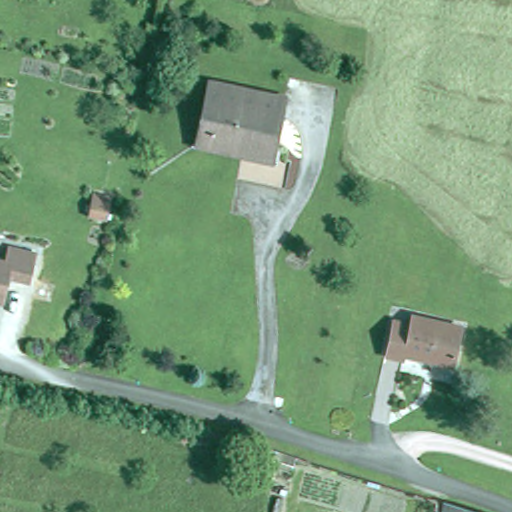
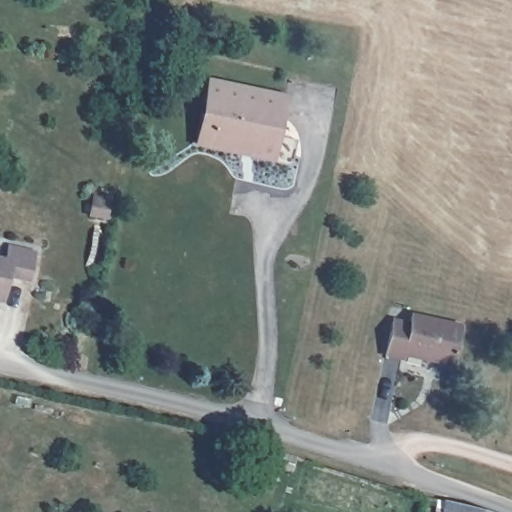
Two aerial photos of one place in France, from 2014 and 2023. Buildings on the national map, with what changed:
unchanged [(290,104),(275,163),(204,146),(217,87),(290,104)]
unchanged [(111,220),(95,217),(97,202),(113,204),(111,220)]
unchanged [(34,253),(27,282),(7,278),(2,303),(0,303),(0,262),(6,263),(10,248),(34,253)]
unchanged [(415,316),(465,326),(458,365),(412,357),(411,361),(389,357),(395,320),(413,324),(415,316)]
unchanged [(459,512),(450,512),(450,509),(459,512)]

